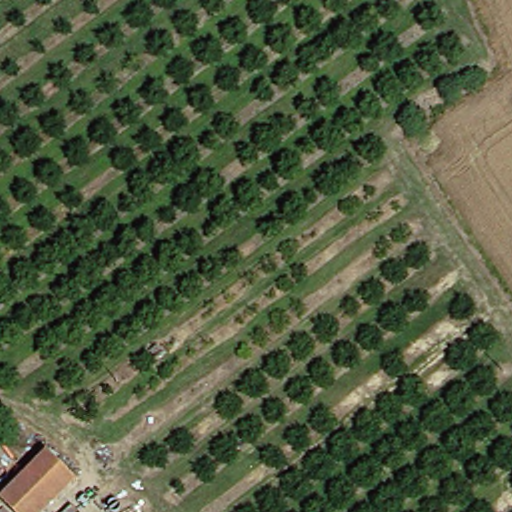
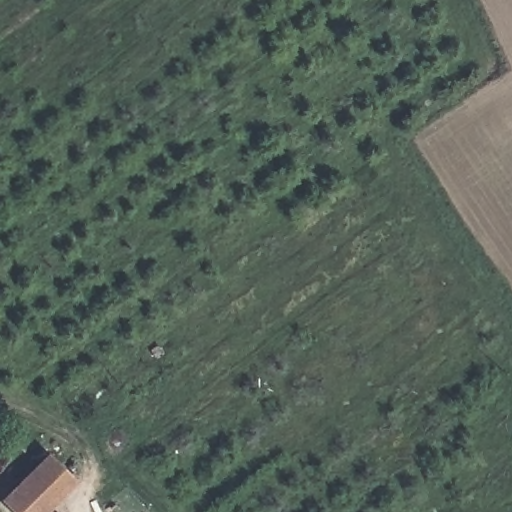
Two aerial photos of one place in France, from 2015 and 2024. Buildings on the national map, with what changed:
unchanged [(51,512),(19,512),(9,503),(50,461),(78,485),(51,512)]

